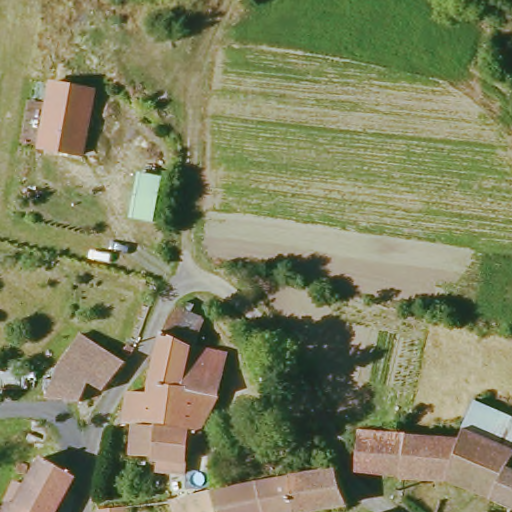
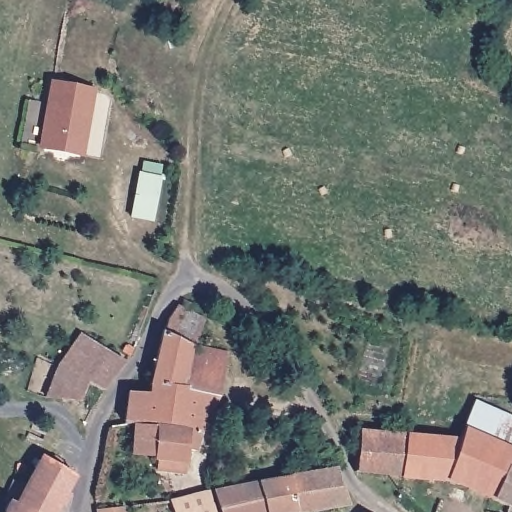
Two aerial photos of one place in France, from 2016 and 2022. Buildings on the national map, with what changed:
unchanged [(95,89),(83,157),(37,149),(48,80),(95,89)]
unchanged [(193,342),(185,387),(223,393),(207,416),(202,421),(194,424),(137,423),(128,423),(131,389),(153,387),(160,337),(177,304),(205,319),(197,343),(193,342)]
unchanged [(58,366),(78,334),(126,360),(105,387),(89,381),(85,403),(73,401),(47,394),(58,366)]
unchanged [(229,351),(223,393),(185,387),(193,342),(197,343),(229,351)]
unchanged [(467,430),(480,403),(512,416),(512,450),(467,430)]
unchanged [(198,433),(198,440),(194,445),(187,447),(186,469),(160,470),(160,458),(153,453),(135,454),(137,423),(194,424),(198,433)]
unchanged [(467,430),(512,450),(512,509),(454,483),(411,479),(417,438),(462,442),(467,430)]
unchanged [(365,433),(417,438),(411,479),(362,475),(365,433)]
unchanged [(42,466),(75,482),(58,512),(6,512),(13,488),(25,493),(42,466)]
unchanged [(347,495),(348,501),(346,506),(309,512),(218,512),(214,489),(340,471),(347,495)]
unchanged [(218,512),(175,512),(172,496),(214,489),(218,512)]
unchanged [(97,512),(97,509),(128,503),(129,512),(97,512)]

